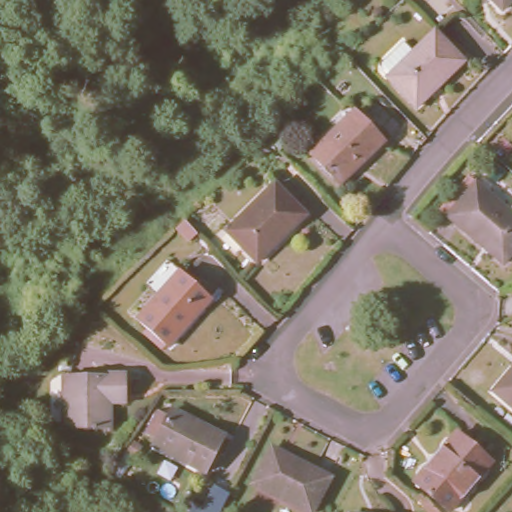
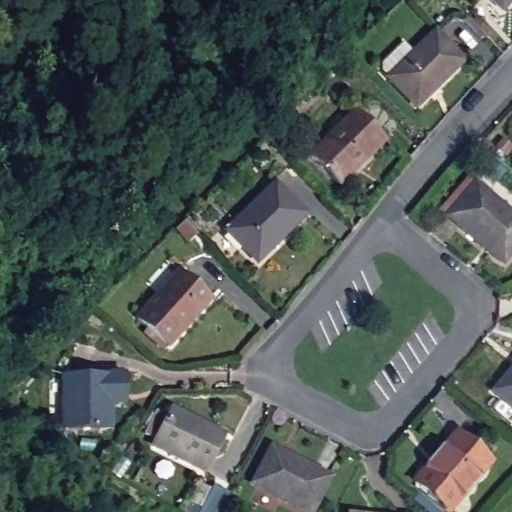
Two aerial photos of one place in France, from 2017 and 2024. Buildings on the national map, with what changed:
unchanged [(512,0),(501,11),(490,0),(512,0)]
unchanged [(433,32),(462,61),(415,107),(386,78),(433,32)]
unchanged [(355,111),(383,142),(338,186),(309,156),(355,111)]
unchanged [(286,139),(275,128),(286,116),(297,127),(286,139)]
unchanged [(512,209),(512,246),(501,259),(446,212),(475,178),(512,209)]
unchanged [(275,184),(305,215),(255,263),(225,232),(275,184)]
unchanged [(180,271),(210,299),(165,349),(135,321),(180,271)]
unchanged [(512,408),(491,391),(512,367),(512,408)]
unchanged [(125,388),(125,397),(107,396),(107,425),(62,425),(61,369),(124,370),(125,388)]
unchanged [(171,405),(221,432),(203,468),(152,442),(171,405)]
unchanged [(455,432),(490,462),(446,512),(412,483),(455,432)]
unchanged [(333,476),(314,512),(311,512),(256,483),(275,447),(333,476)]

